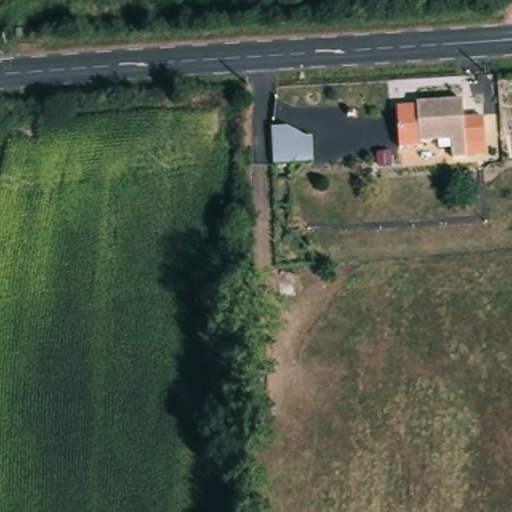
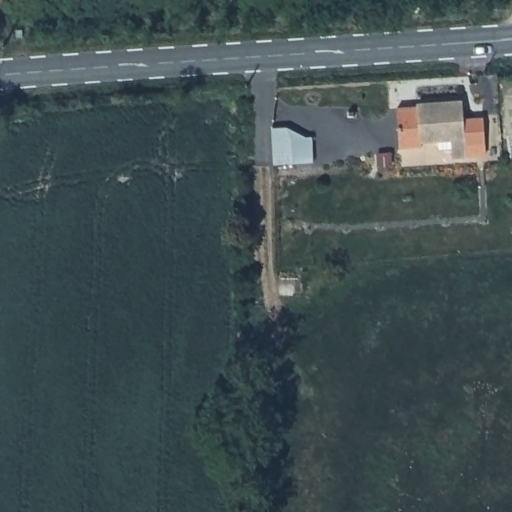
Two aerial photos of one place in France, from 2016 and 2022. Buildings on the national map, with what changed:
unchanged [(461,103),(463,121),(482,120),(485,149),(467,150),(467,158),(447,157),(446,145),(401,146),(397,106),(461,103)]
unchanged [(289,130),(290,141),(316,145),(317,165),(270,167),(267,130),(289,130)]

